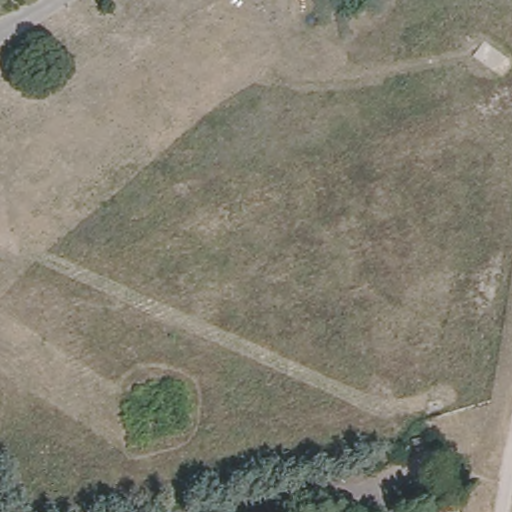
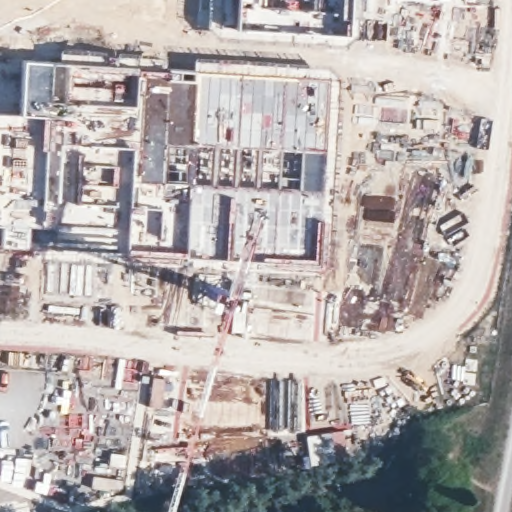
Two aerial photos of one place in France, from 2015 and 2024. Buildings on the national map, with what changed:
new [(353,16),(354,34),(343,46),(217,38),(205,26),(206,0),(357,0),(356,16),(353,16)]
new [(327,65),(340,78),(330,266),(315,275),(40,260),(39,249),(0,247),(0,227),(0,112),(18,112),(22,60),(57,61),(58,49),(163,56),(160,68),(191,69),(193,59),(327,65)]
unchanged [(447,425),(450,432),(442,432),(441,426),(447,425)]
unchanged [(433,428),(435,436),(397,444),(395,436),(433,428)]
demolished [(512,434),(510,429),(512,429),(512,434)]
unchanged [(453,443),(455,449),(447,451),(446,445),(453,443)]
unchanged [(444,457),(447,473),(437,475),(434,460),(444,457)]

